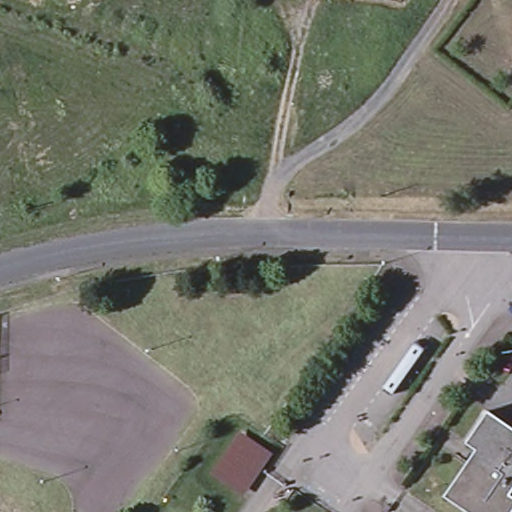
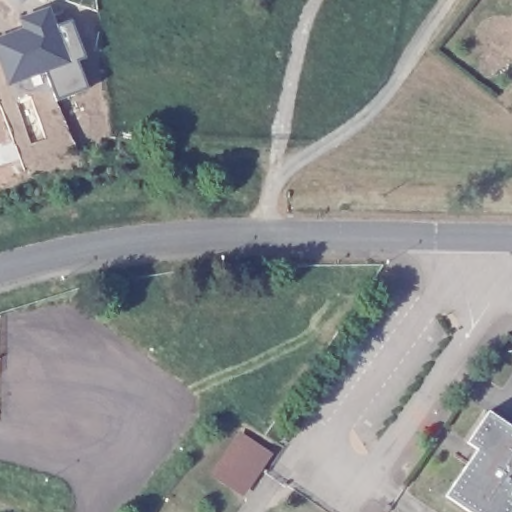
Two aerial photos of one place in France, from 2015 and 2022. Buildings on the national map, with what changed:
new [(54,22),(70,16),(85,52),(77,56),(87,86),(52,100),(41,70),(6,83),(0,65),(0,36),(22,27),(18,16),(47,5),(54,22)]
unchanged [(449,492),(480,446),(471,438),(492,408),(512,421),(512,512),(478,512),(449,492)]
unchanged [(267,453),(240,494),(209,473),(233,433),(267,453)]

